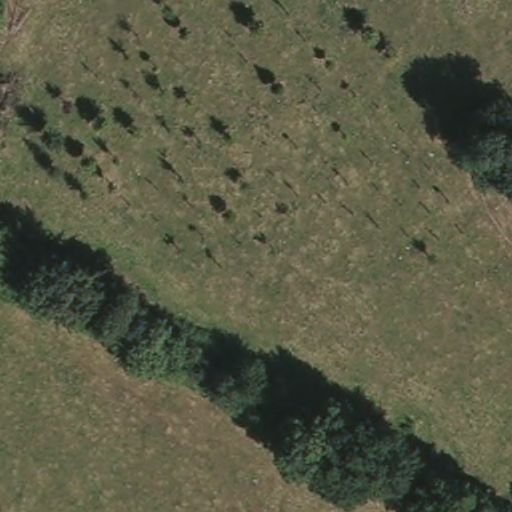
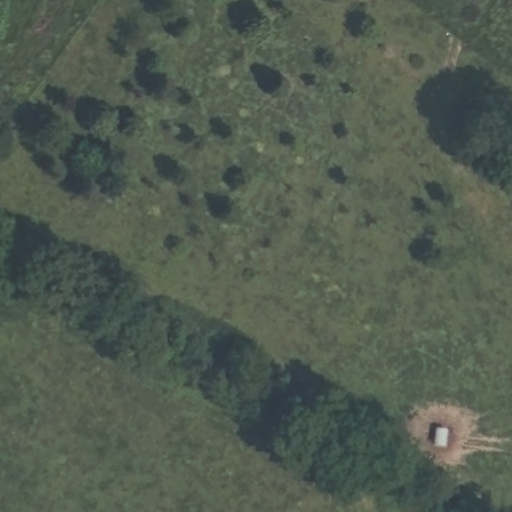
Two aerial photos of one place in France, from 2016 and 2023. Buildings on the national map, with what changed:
[]

